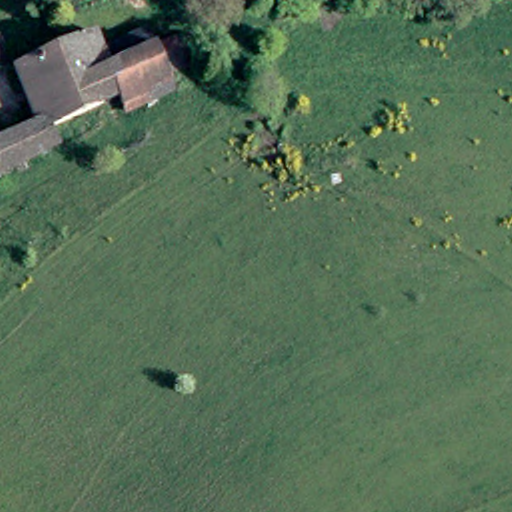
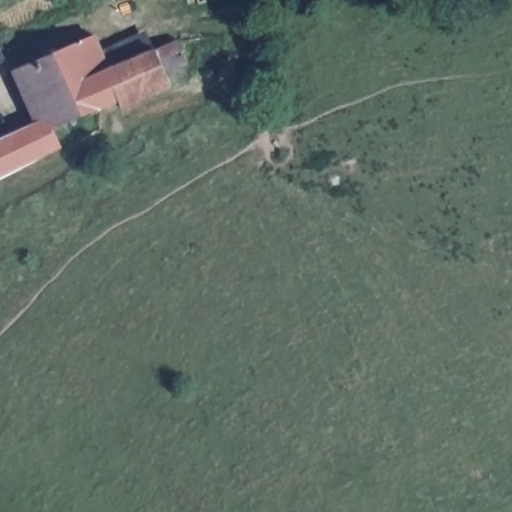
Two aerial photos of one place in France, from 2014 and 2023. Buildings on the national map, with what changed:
unchanged [(104,69),(171,38),(183,64),(166,75),(170,81),(121,104),(116,95),(50,129),(57,143),(0,169),(0,135),(32,119),(8,70),(87,35),(104,69)]

